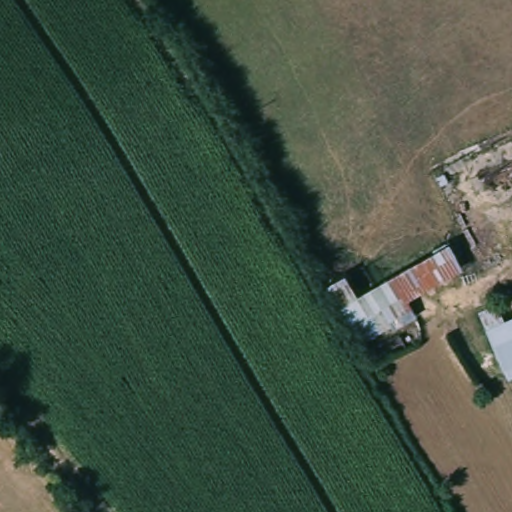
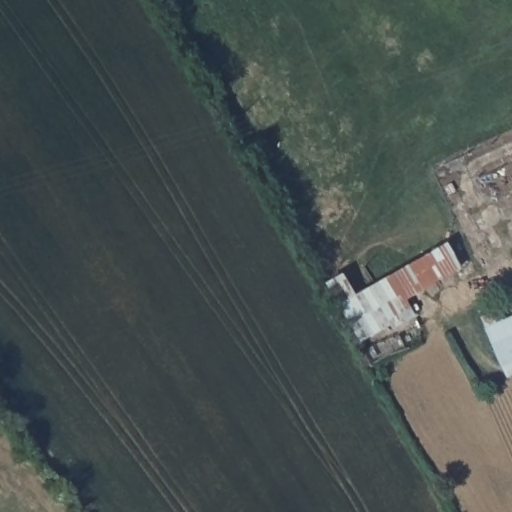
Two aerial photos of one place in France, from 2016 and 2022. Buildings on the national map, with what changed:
unchanged [(406,299),(416,313),(359,346),(323,284),(343,271),(356,291),(450,240),(461,263),(406,299)]
unchanged [(505,372),(487,334),(512,323),(512,369),(505,372)]

